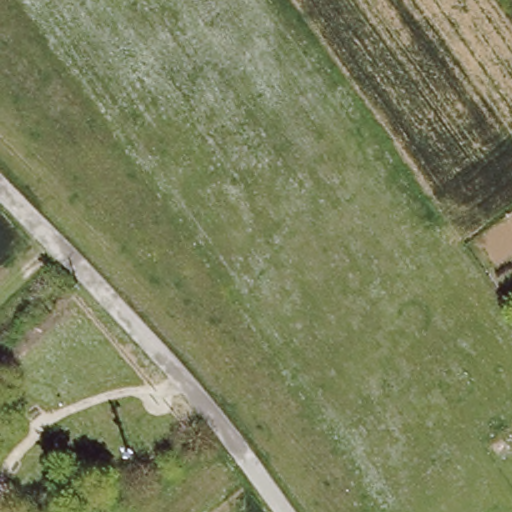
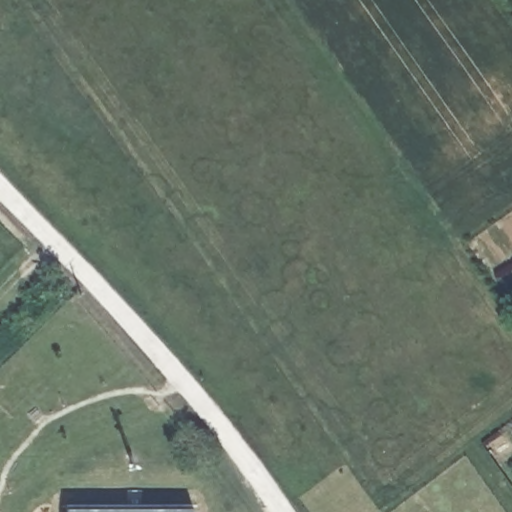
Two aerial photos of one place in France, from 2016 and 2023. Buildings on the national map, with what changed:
new [(193,512),(66,512),(67,506),(193,506),(193,512)]

